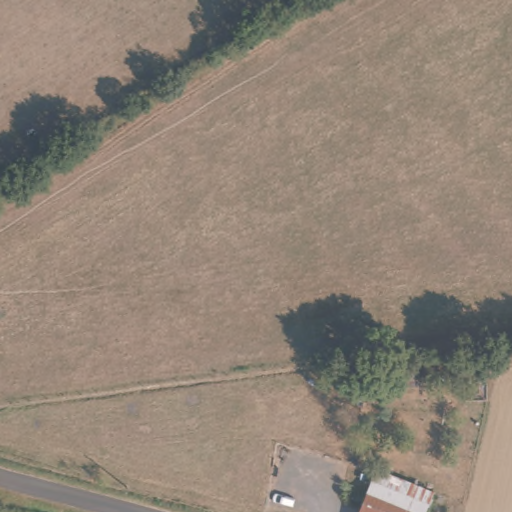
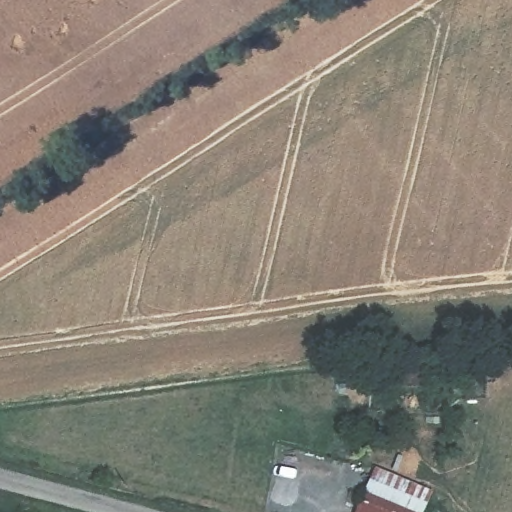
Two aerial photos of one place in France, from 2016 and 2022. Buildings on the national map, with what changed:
unchanged [(418,512),(361,512),(369,493),(418,512)]

